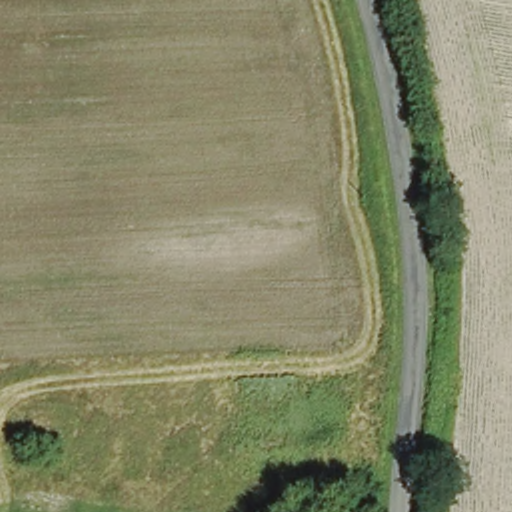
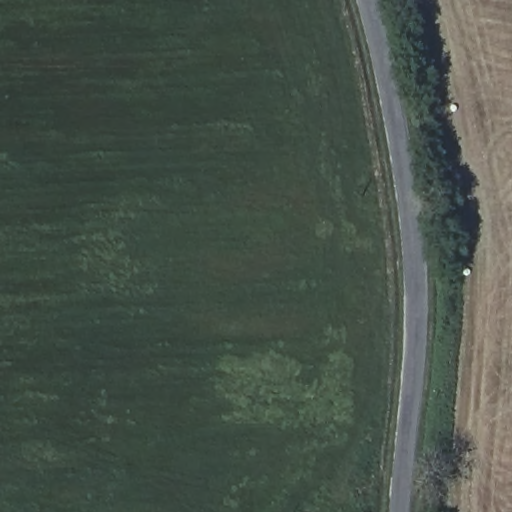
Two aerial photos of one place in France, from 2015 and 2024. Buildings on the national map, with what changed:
[]

